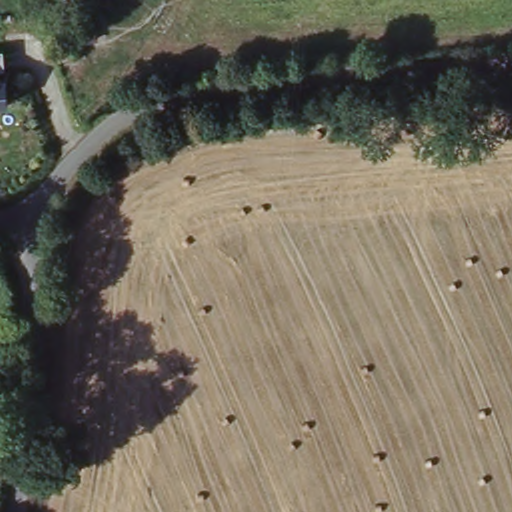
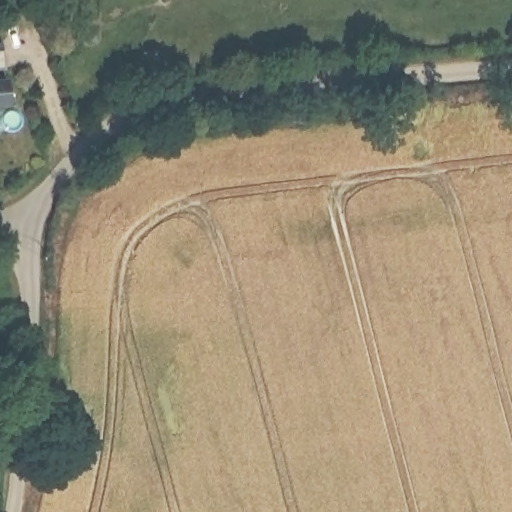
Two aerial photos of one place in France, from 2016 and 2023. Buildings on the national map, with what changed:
unchanged [(5,67),(0,68),(0,48),(4,48),(5,67)]
unchanged [(9,106),(0,107),(0,78),(6,78),(9,106)]

